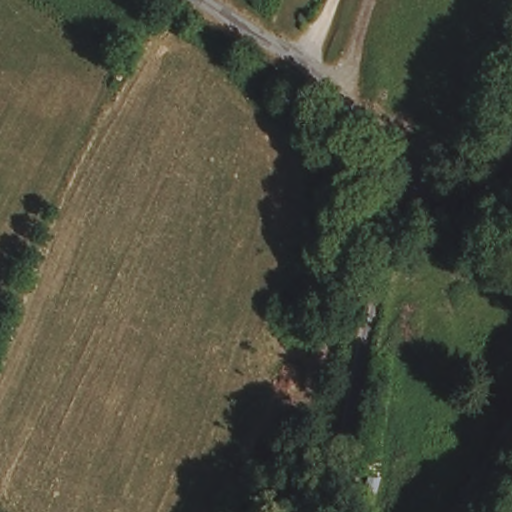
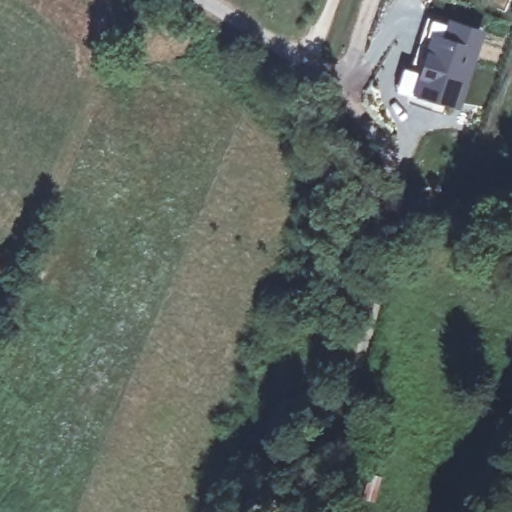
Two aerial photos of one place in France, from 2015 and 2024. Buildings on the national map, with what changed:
new [(403,66),(415,69),(418,58),(415,57),(427,17),(447,21),(448,18),(484,29),(458,110),(407,96),(408,90),(397,87),(403,66)]

